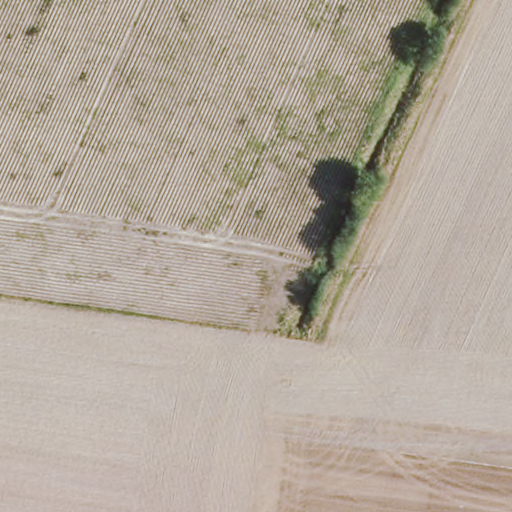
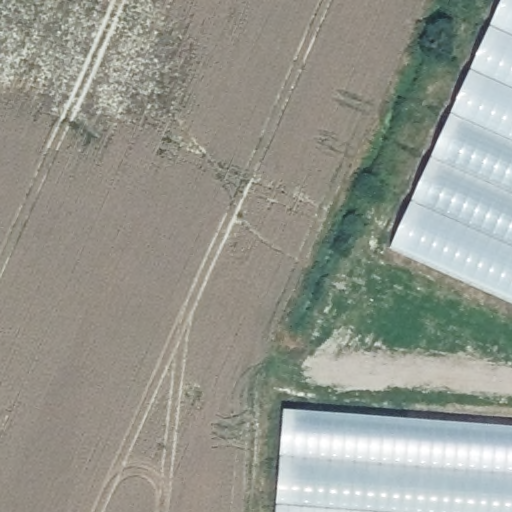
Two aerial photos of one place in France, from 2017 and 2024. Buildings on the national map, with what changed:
new [(401,252),(509,0),(512,0),(512,302),(401,252)]
new [(282,413),(512,429),(512,512),(277,512),(282,413)]

